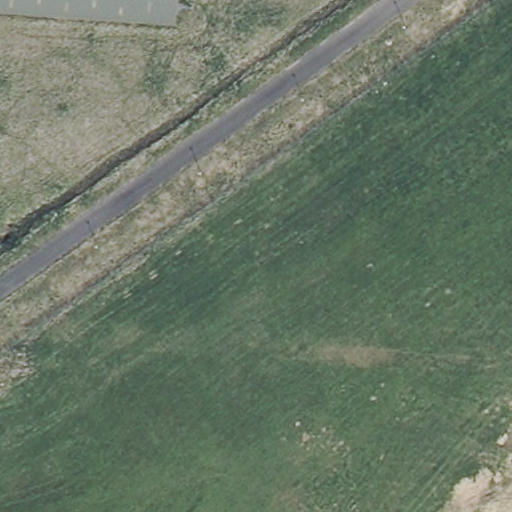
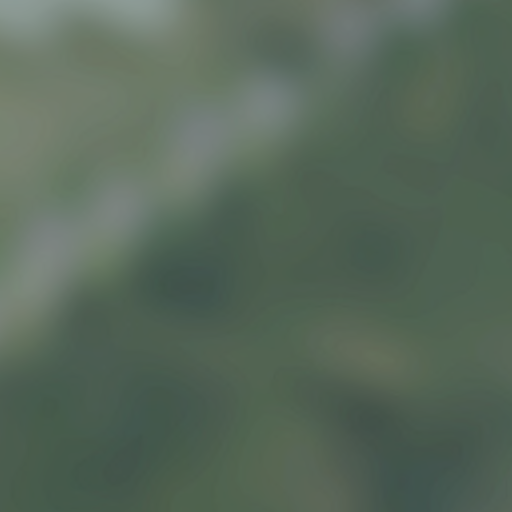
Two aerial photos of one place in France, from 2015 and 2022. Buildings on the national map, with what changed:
unchanged [(0,15),(0,0),(177,0),(175,28),(0,15)]

